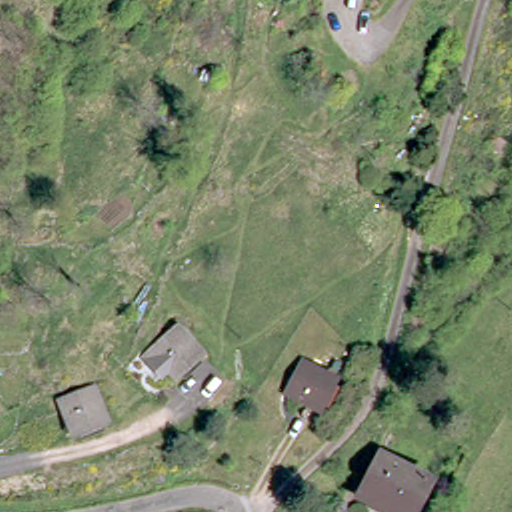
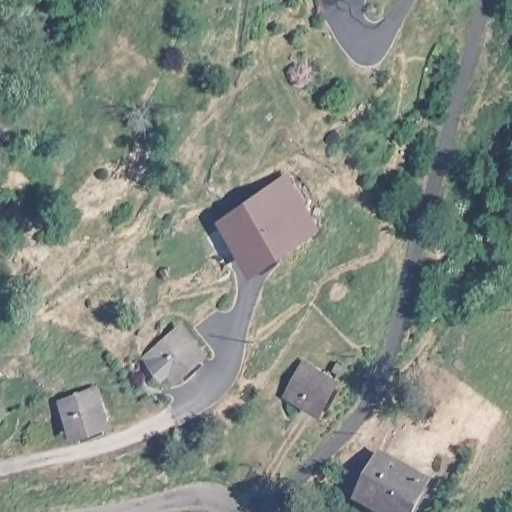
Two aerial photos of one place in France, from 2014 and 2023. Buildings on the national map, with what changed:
new [(217,221),(290,171),(328,224),(255,276),(217,221)]
unchanged [(197,359),(170,381),(147,355),(176,332),(197,359)]
unchanged [(318,408),(289,392),(306,361),(336,377),(318,408)]
unchanged [(60,395),(87,384),(93,398),(101,416),(73,428),(67,412),(60,395)]
unchanged [(409,512),(393,512),(361,495),(380,455),(426,479),(409,512)]

